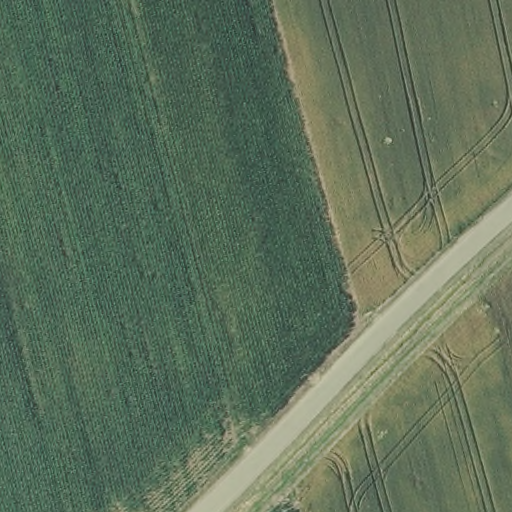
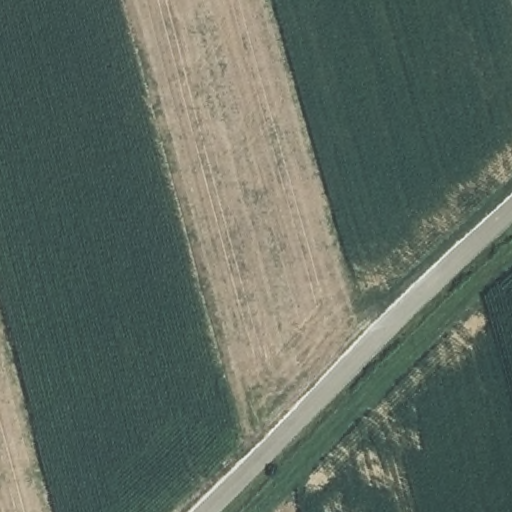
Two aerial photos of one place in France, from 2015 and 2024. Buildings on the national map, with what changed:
[]

